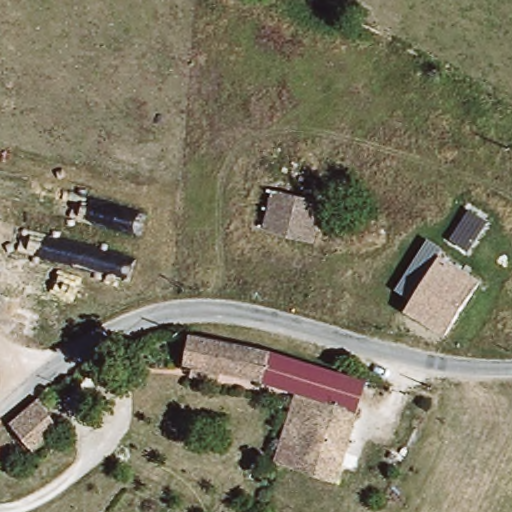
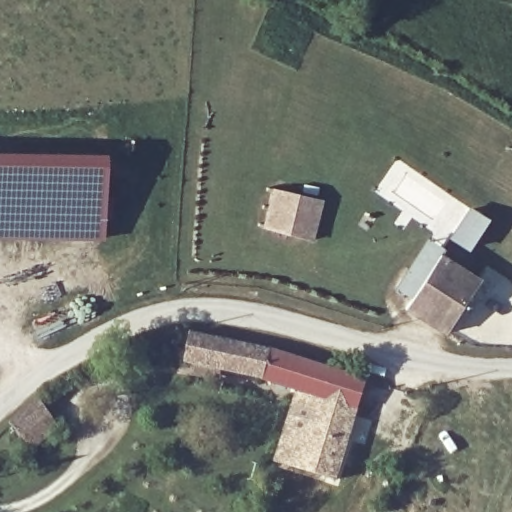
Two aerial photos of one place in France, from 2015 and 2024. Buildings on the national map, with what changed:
new [(0,238),(0,153),(105,155),(104,240),(0,238)]
unchanged [(313,236),(261,224),(270,186),(322,198),(313,236)]
new [(468,211),(485,221),(468,251),(450,241),(468,211)]
unchanged [(445,330),(405,305),(439,251),(479,276),(445,330)]
unchanged [(181,356),(188,323),(366,368),(357,401),(293,384),(181,356)]
unchanged [(275,453),(293,384),(357,401),(338,471),(275,453)]
new [(33,451),(10,423),(37,399),(63,428),(33,451)]
demolished [(43,432),(18,455),(2,439),(28,414),(43,432)]

